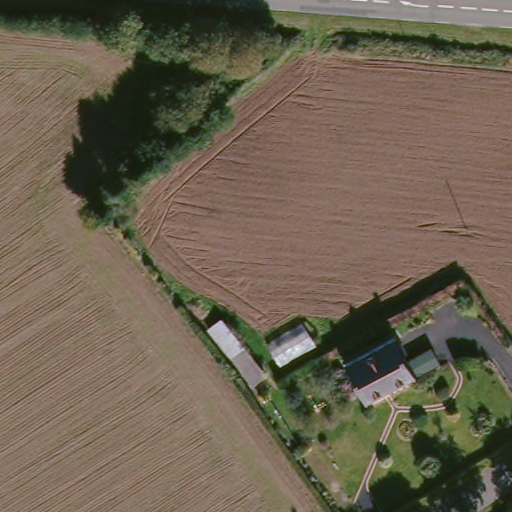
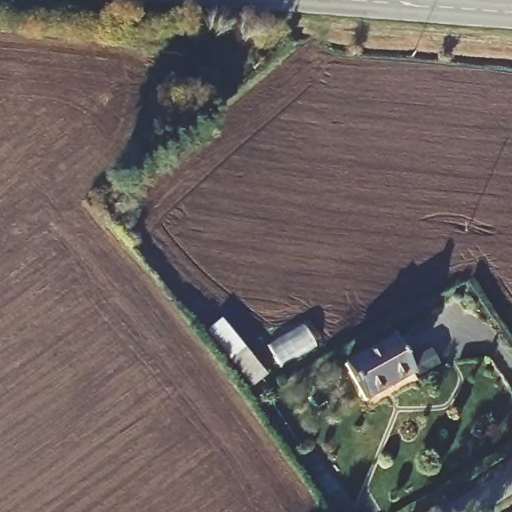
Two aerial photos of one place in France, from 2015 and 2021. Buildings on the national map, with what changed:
unchanged [(217,319),(260,374),(246,386),(202,330),(217,319)]
unchanged [(388,338),(408,373),(360,401),(340,365),(388,338)]

